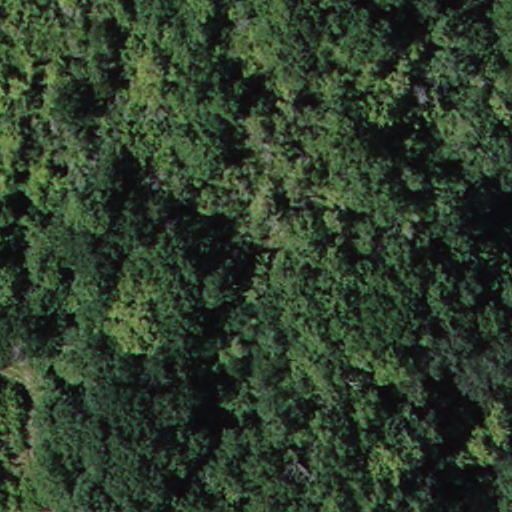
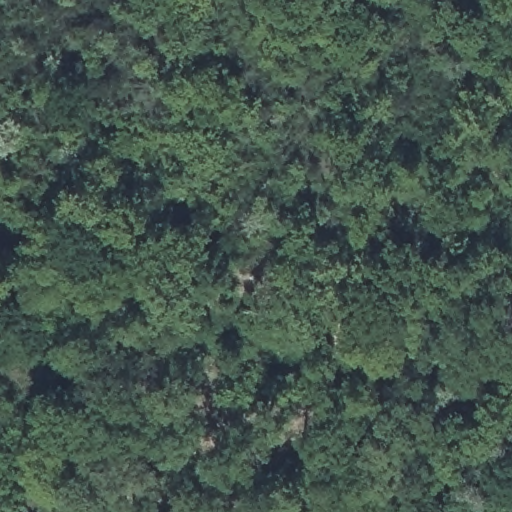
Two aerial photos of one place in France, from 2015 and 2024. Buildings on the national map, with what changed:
unchanged [(271,326),(232,323),(234,292),(272,295),(271,326)]

